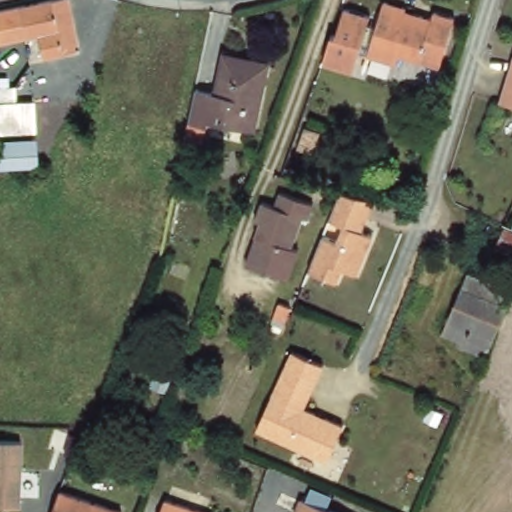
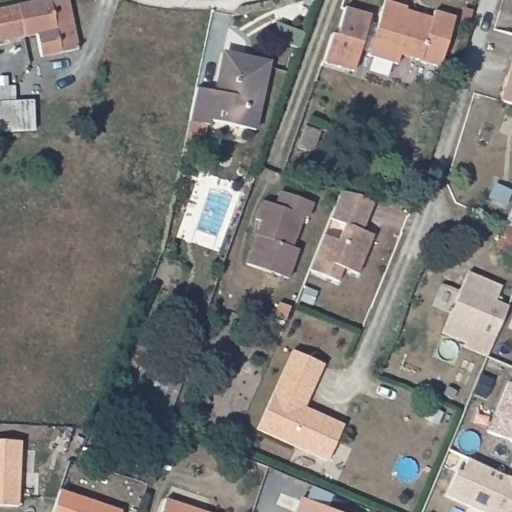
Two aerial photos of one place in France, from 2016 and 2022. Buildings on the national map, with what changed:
unchanged [(48,0),(68,0),(78,49),(41,57),(37,35),(0,42),(0,9),(48,0)]
unchanged [(407,7),(406,11),(431,19),(433,11),(455,17),(439,67),(400,55),(397,65),(367,56),(368,53),(359,51),(353,71),(322,61),(331,34),(336,35),(344,8),(370,15),(367,23),(377,26),(384,0),(407,7)]
unchanged [(222,56),(242,60),(243,58),(253,60),(270,64),(256,131),(210,122),(209,126),(188,122),(196,88),(215,92),(222,56)]
unchanged [(497,99),(506,70),(512,67),(512,104),(500,100),(497,99)]
unchanged [(10,87),(10,102),(27,102),(29,131),(0,132),(0,87),(10,87)]
unchanged [(30,139),(30,163),(0,165),(0,140),(30,139)]
unchanged [(256,220),(262,201),(275,205),(280,191),(314,203),(308,219),(302,217),(292,247),(298,250),(287,279),(246,264),(261,222),(256,220)]
unchanged [(327,219),(337,191),(370,200),(357,232),(368,235),(353,274),(341,269),(336,281),(307,270),(320,235),(336,241),(342,225),(327,219)]
unchanged [(512,255),(497,248),(505,229),(512,232),(512,255)]
unchanged [(501,287),(495,301),(508,307),(487,358),(463,349),(467,342),(442,332),(467,272),(501,287)]
unchanged [(327,460),(261,429),(293,348),(326,362),(307,406),(346,422),(327,460)]
new [(508,382),(512,384),(512,442),(487,432),(508,382)]
unchanged [(15,441),(26,442),(26,444),(22,506),(0,505),(0,441),(15,441)]
new [(455,471),(461,473),(467,458),(512,479),(512,512),(479,512),(444,496),(455,471)]
unchanged [(116,512),(47,512),(54,490),(116,510),(116,512)]
unchanged [(330,512),(291,512),(297,498),(330,512)]
unchanged [(161,512),(165,499),(201,512),(161,512)]

